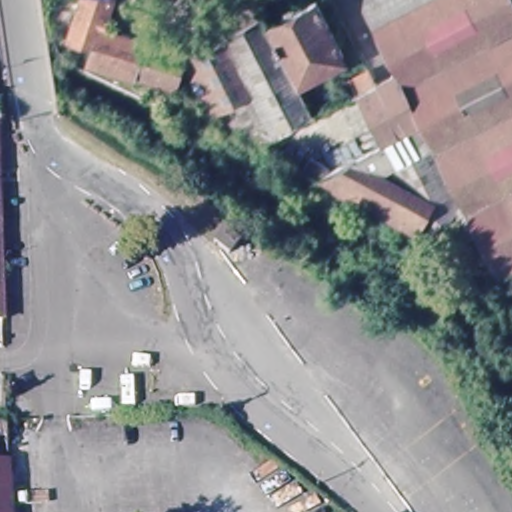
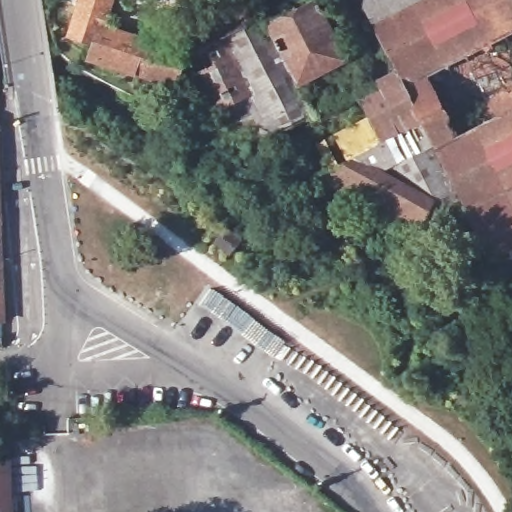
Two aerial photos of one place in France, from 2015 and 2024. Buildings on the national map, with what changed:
unchanged [(179,90),(143,80),(92,64),(96,50),(72,41),(82,0),(105,0),(112,0),(105,32),(189,54),(179,90)]
unchanged [(263,24),(310,0),(312,0),(339,51),(300,72),(302,77),(293,82),(263,24)]
unchanged [(512,265),(496,273),(393,70),(375,30),(372,0),(512,0),(512,265)]
unchanged [(492,271),(378,205),(298,158),(225,116),(179,90),(189,54),(201,12),(253,3),(263,24),(293,82),(309,113),(346,94),(338,79),(365,65),(372,80),(391,71),(393,70),(496,273),(492,271)]
unchanged [(5,322),(0,323),(0,218),(5,322)]
unchanged [(230,256),(215,243),(227,227),(242,238),(232,254),(230,256)]
unchanged [(0,512),(0,417),(9,416),(12,503),(13,512),(0,512)]

